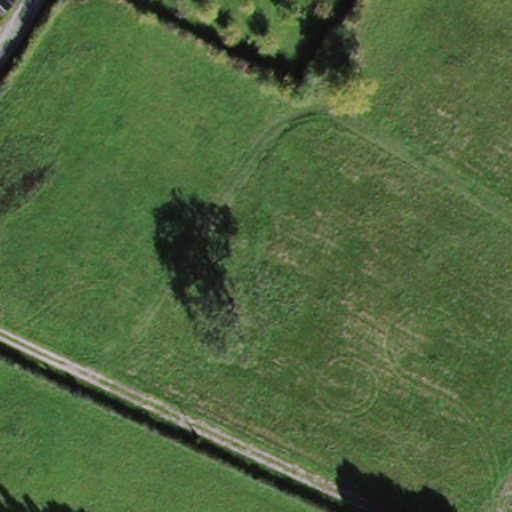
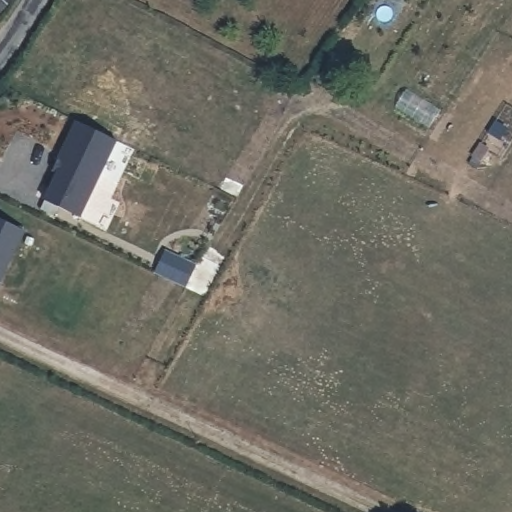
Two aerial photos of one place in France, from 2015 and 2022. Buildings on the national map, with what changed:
unchanged [(0,11),(0,0),(11,0),(0,11)]
new [(77,123),(118,143),(80,219),(45,201),(64,162),(59,159),(77,123)]
new [(53,171),(59,159),(64,162),(58,174),(53,171)]
new [(24,231),(0,280),(0,219),(24,231)]

